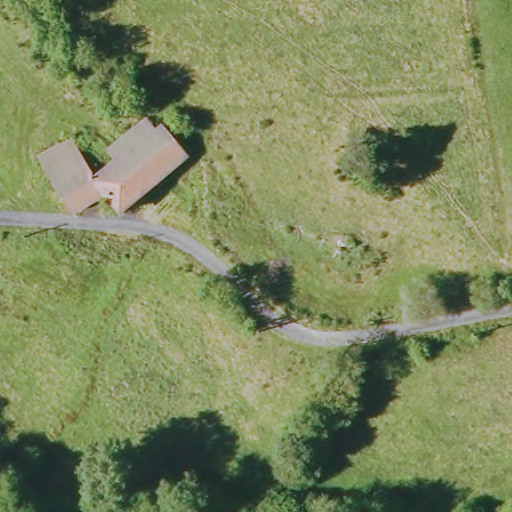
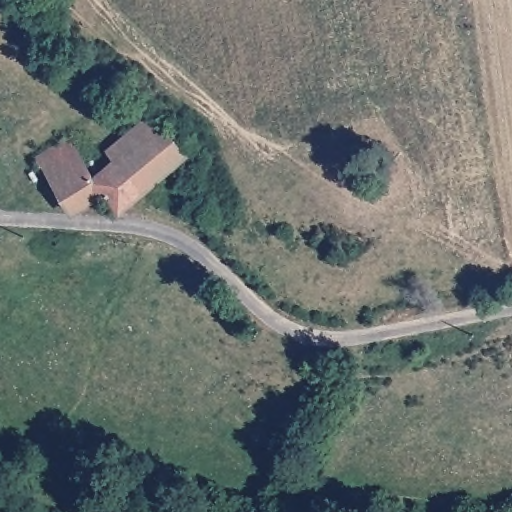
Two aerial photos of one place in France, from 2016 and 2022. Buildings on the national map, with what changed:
unchanged [(72,145),(100,190),(121,171),(111,159),(150,129),(160,140),(165,135),(190,162),(122,219),(105,200),(75,220),(42,167),(72,145)]

